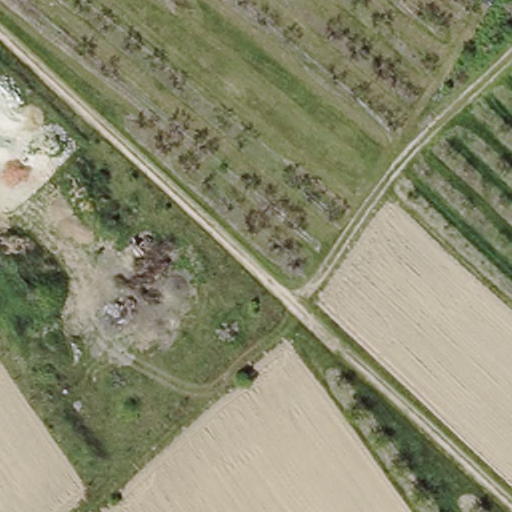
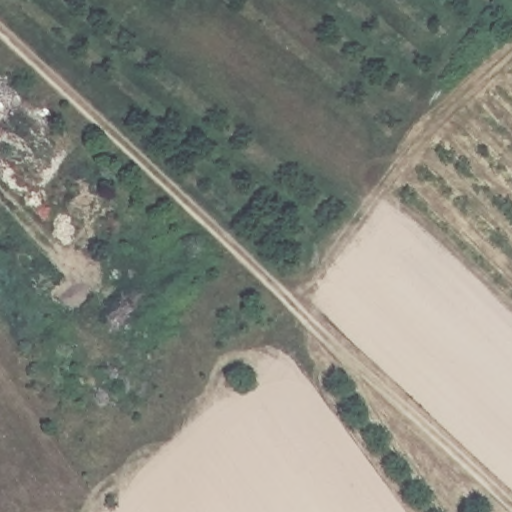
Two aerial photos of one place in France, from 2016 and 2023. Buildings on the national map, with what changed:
[]

